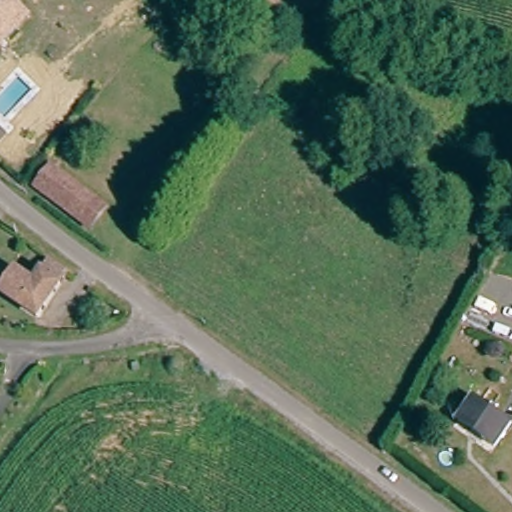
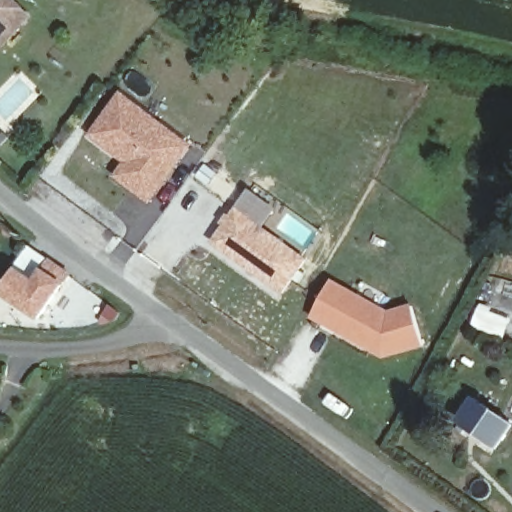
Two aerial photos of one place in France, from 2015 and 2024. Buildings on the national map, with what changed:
unchanged [(14,0),(27,14),(17,25),(0,42),(0,0),(14,0)]
new [(113,178),(122,165),(86,136),(120,91),(194,147),(150,204),(113,178)]
new [(250,188),(276,208),(264,227),(307,260),(279,297),(245,272),(209,241),(250,188)]
unchanged [(67,274),(36,314),(1,290),(18,270),(32,280),(45,260),(67,274)]
new [(331,282),(389,314),(412,307),(424,346),(383,358),(311,317),(331,282)]
unchanged [(163,356),(156,363),(148,355),(153,348),(163,356)]
unchanged [(478,392),(512,417),(512,419),(494,447),(479,435),(458,420),(464,413),(478,392)]

